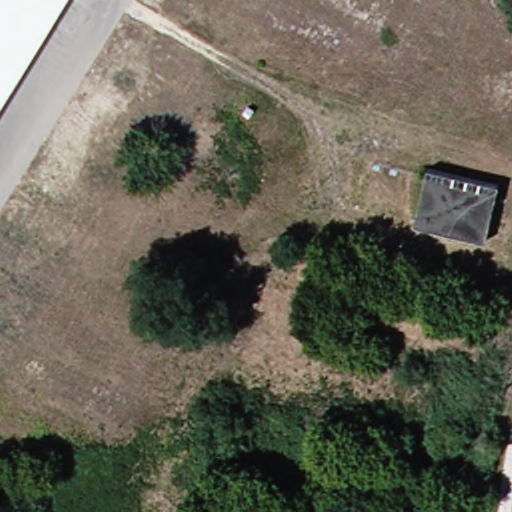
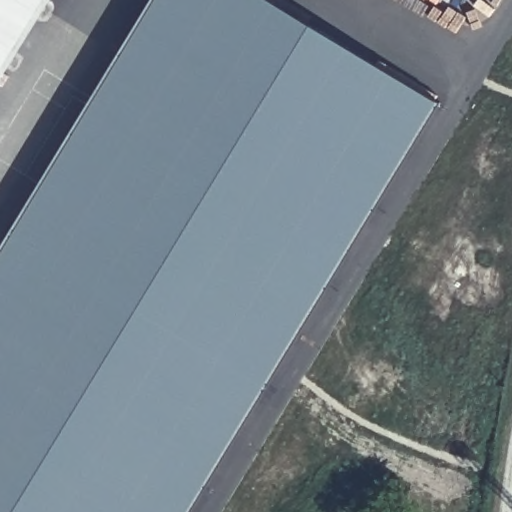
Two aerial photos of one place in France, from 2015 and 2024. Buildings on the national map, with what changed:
new [(51,0),(0,83),(0,0),(51,0)]
new [(157,0),(275,0),(442,101),(194,512),(0,512),(0,257),(157,0)]
demolished [(480,236),(409,218),(423,162),(494,179),(480,236)]

